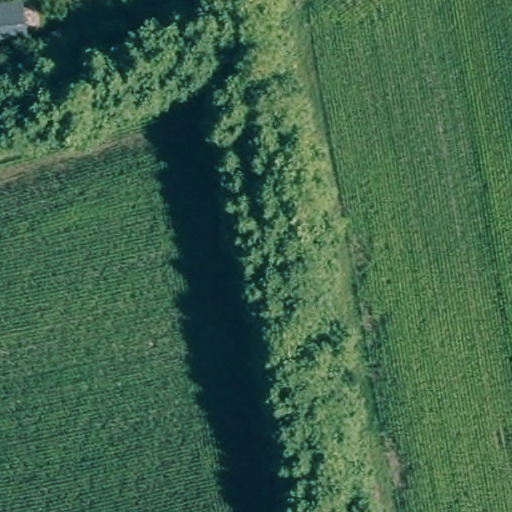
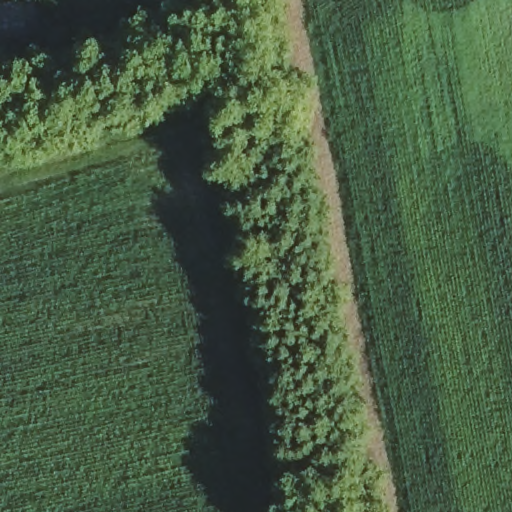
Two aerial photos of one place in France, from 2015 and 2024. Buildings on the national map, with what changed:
unchanged [(29,2),(39,24),(7,41),(0,25),(0,15),(29,2)]

